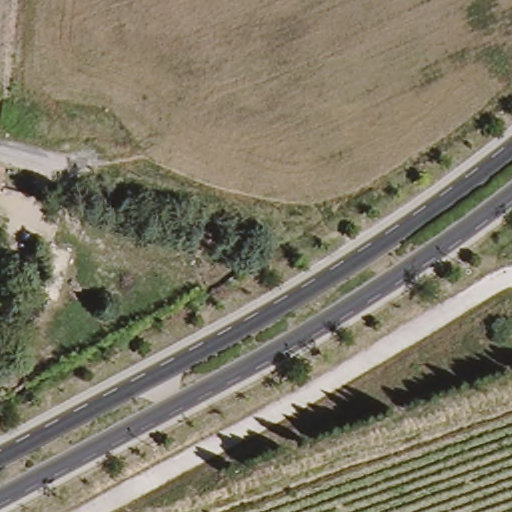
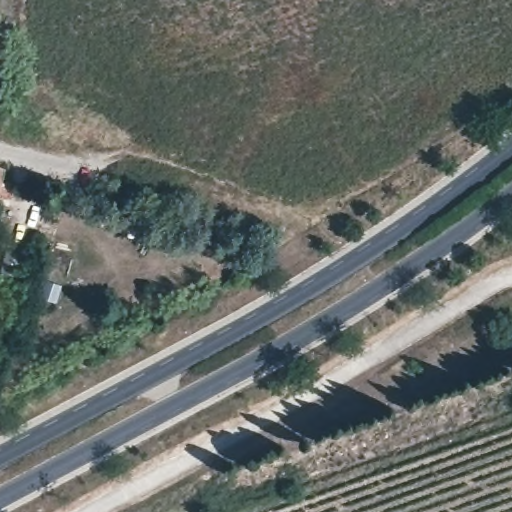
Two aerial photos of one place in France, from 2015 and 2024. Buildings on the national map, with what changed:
unchanged [(3,197),(0,196),(0,167),(10,169),(3,197)]

